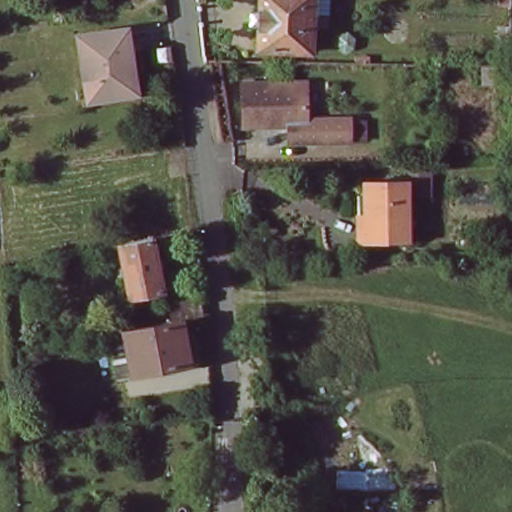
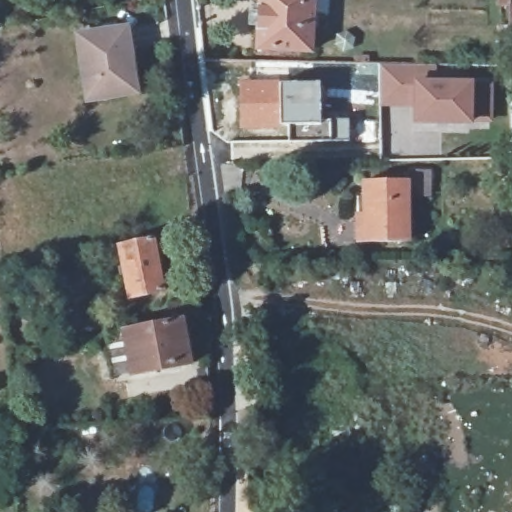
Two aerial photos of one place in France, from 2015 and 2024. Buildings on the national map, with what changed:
unchanged [(308,51),(256,48),(257,0),(310,0),(308,51)]
unchanged [(120,96),(84,101),(76,37),(126,31),(130,66),(134,95),(120,96)]
new [(489,119),(468,119),(468,121),(414,121),(414,104),(379,103),(378,64),(432,64),(432,82),(469,82),(469,85),(489,85),(489,119)]
unchanged [(349,141),(287,141),(287,126),(241,125),(242,81),(306,81),(306,123),(349,123),(349,141)]
new [(414,177),(429,176),(430,198),(415,199),(414,177)]
unchanged [(405,240),(362,241),(362,181),(404,181),(405,240)]
unchanged [(150,237),(162,292),(129,298),(118,243),(150,237)]
unchanged [(116,381),(106,338),(170,326),(167,310),(201,305),(203,319),(180,324),(189,367),(116,381)]

